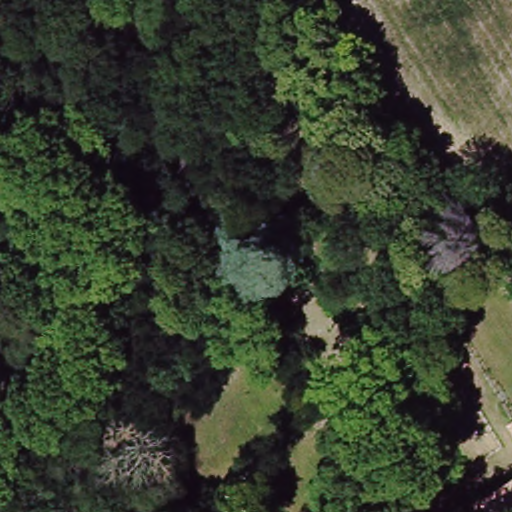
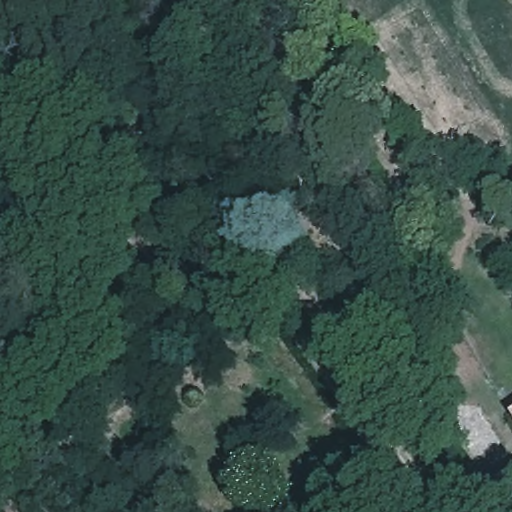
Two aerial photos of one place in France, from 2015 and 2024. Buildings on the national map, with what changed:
unchanged [(512,416),(512,437),(503,422),(512,416)]
unchanged [(512,512),(488,512),(477,497),(512,472),(512,512)]

